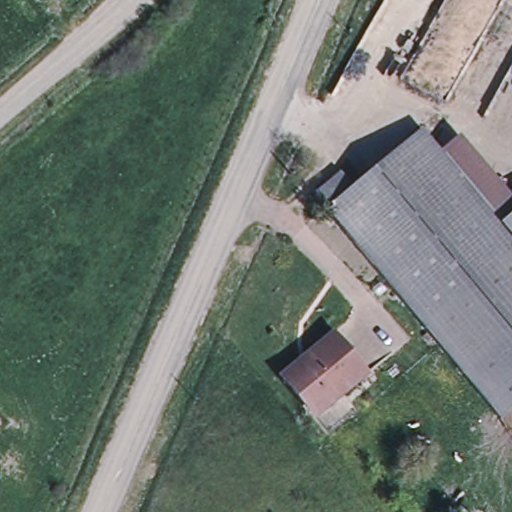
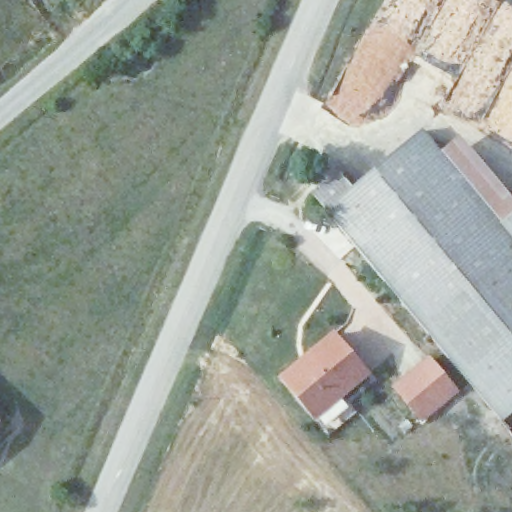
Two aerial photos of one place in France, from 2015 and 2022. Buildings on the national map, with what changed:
unchanged [(445,152),(501,221),(512,212),(512,317),(383,163),(425,129),(445,152)]
unchanged [(445,152),(464,137),(512,195),(512,212),(501,221),(445,152)]
unchanged [(315,191),(343,169),(357,185),(383,163),(512,317),(512,404),(500,414),(315,191)]
unchanged [(335,336),(368,376),(363,380),(334,403),(317,417),(284,377),(330,340),(335,336)]
new [(430,357),(460,394),(420,422),(392,384),(430,357)]
unchanged [(2,422),(0,424),(0,420),(2,422)]

